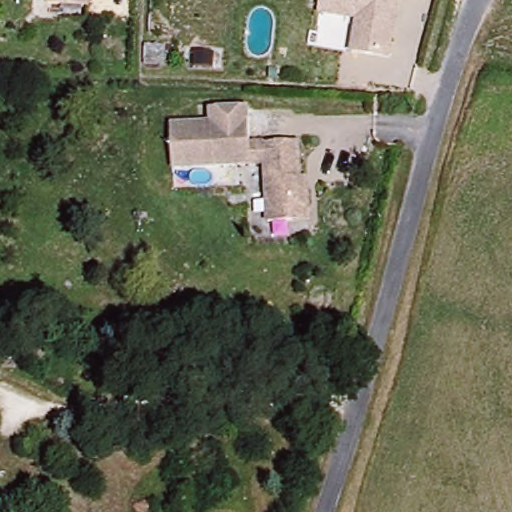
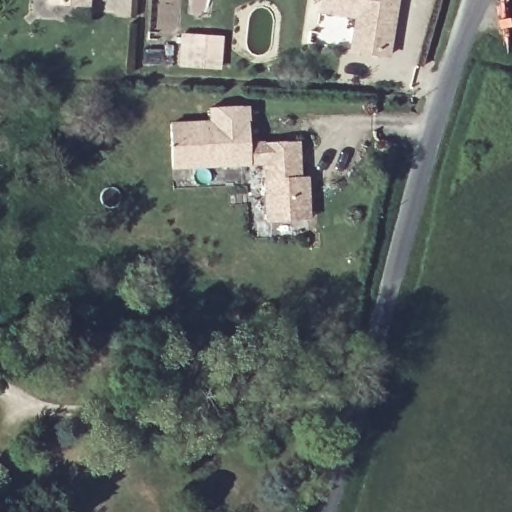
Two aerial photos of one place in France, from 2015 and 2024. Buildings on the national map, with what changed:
unchanged [(62,0),(87,0),(86,3),(62,0)]
unchanged [(353,50),(358,18),(321,11),(323,0),(399,0),(397,9),(395,26),(390,57),(353,50)]
new [(180,31),(224,35),(221,68),(177,65),(180,31)]
unchanged [(295,213),(270,216),(263,158),(248,160),(171,168),(166,126),(205,122),(204,108),(241,104),(245,140),(294,135),(298,170),(306,169),(307,179),(310,198),(311,211),(295,213)]

